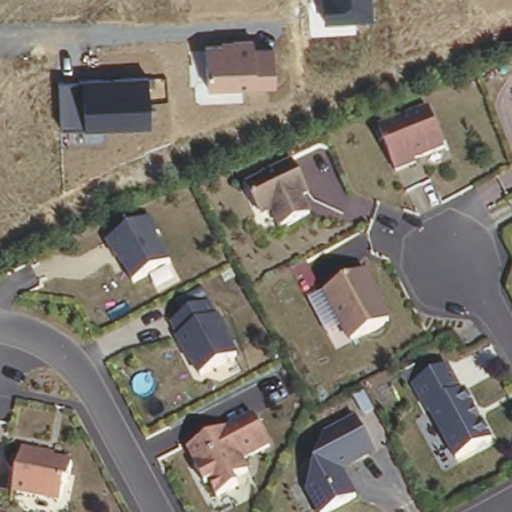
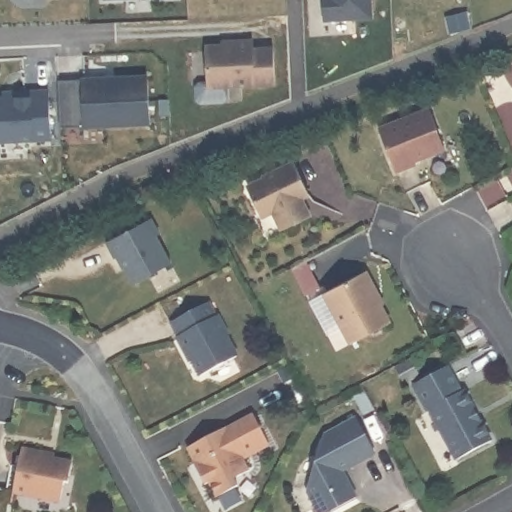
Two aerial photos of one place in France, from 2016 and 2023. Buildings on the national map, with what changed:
new [(105,0),(123,0),(105,1),(105,0)]
unchanged [(322,21),(320,0),(372,0),(374,17),(322,21)]
unchanged [(276,85),(206,87),(204,44),(221,43),(221,37),(252,35),(252,45),(274,44),(276,85)]
unchanged [(150,123),(81,127),(81,123),(61,124),(58,78),(150,71),(150,123)]
new [(15,91),(51,90),(54,138),(0,141),(0,97),(5,97),(5,92),(15,91)]
unchanged [(431,108),(446,147),(416,160),(417,163),(397,171),(380,127),(431,108)]
unchanged [(266,215),(260,212),(250,192),(252,185),(264,179),(263,177),(294,162),(308,190),(310,195),(302,198),(312,217),(283,231),(273,212),(266,215)]
unchanged [(152,217),(160,232),(157,235),(172,262),(134,282),(119,254),(116,256),(109,240),(152,217)]
new [(306,261),(321,288),(306,295),(292,268),(306,261)]
unchanged [(379,291),(385,302),(382,304),(391,321),(353,341),(326,290),(368,269),(379,291)]
unchanged [(201,375),(189,351),(188,352),(179,336),(180,335),(173,321),(210,301),(217,316),(219,315),(229,335),(227,336),(238,356),(201,375)]
unchanged [(448,365),(462,391),(465,390),(493,440),(458,458),(431,410),(429,410),(415,385),(448,365)]
unchanged [(249,471),(235,478),(239,486),(218,496),(210,481),(206,484),(195,463),(197,462),(189,447),(212,435),(226,427),(227,429),(254,415),(271,445),(244,460),(249,471)]
unchanged [(370,449),(337,467),(352,497),(324,512),(315,512),(303,490),(320,435),(352,417),(370,449)]
unchanged [(25,449),(46,453),(46,457),(75,463),(71,482),(68,481),(63,500),(17,490),(25,449)]

